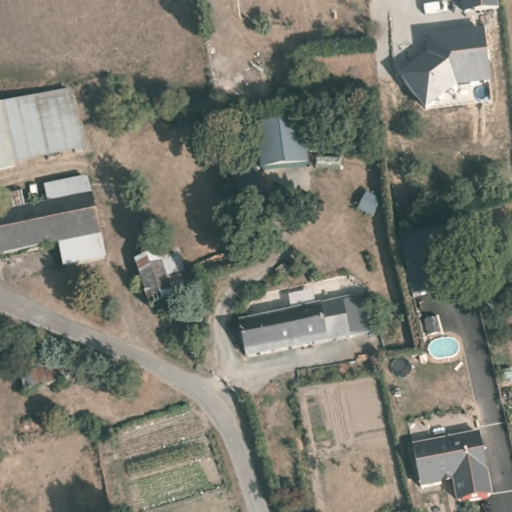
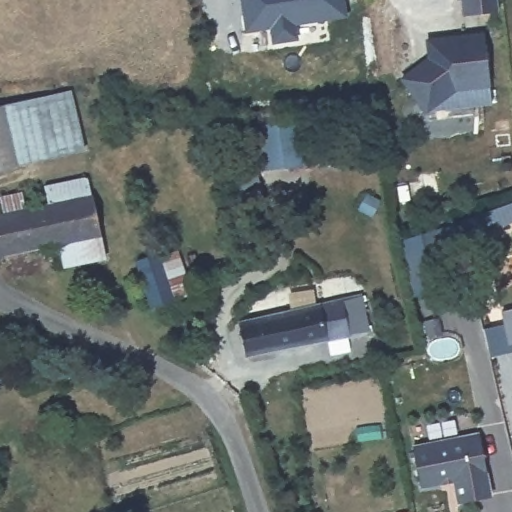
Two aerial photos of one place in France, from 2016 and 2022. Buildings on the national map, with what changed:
new [(350,17),(299,25),(301,39),(274,44),(272,30),(247,32),(242,0),(347,0),(350,17)]
unchanged [(461,15),(461,0),(496,0),(496,9),(461,15)]
unchanged [(490,89),(456,91),(425,115),(400,79),(428,57),(427,38),(484,33),(490,89)]
unchanged [(71,89),(85,147),(0,165),(0,104),(71,89)]
unchanged [(307,165),(256,170),(260,204),(238,207),(234,162),(259,159),(256,127),(302,119),(307,165)]
unchanged [(106,254),(66,263),(61,240),(0,252),(0,212),(5,211),(2,194),(24,189),(28,205),(50,200),(46,182),(88,174),(91,191),(94,190),(106,254)]
unchanged [(453,282),(409,297),(400,240),(447,227),(453,282)]
unchanged [(152,307),(137,262),(162,254),(178,249),(193,294),(176,299),(152,307)]
unchanged [(369,331),(350,334),(342,298),(361,295),(369,331)]
unchanged [(291,348),(284,310),(342,298),(350,336),(291,348)]
unchanged [(284,310),(291,348),(249,357),(239,318),(284,310)]
unchanged [(60,359),(66,376),(35,386),(30,369),(60,359)]
unchanged [(475,497),(472,482),(471,479),(460,481),(459,478),(446,481),(447,484),(427,488),(419,447),(480,435),(488,478),(491,494),(475,497)]

